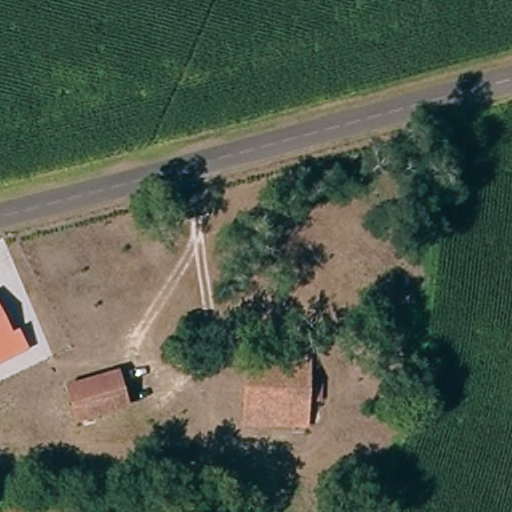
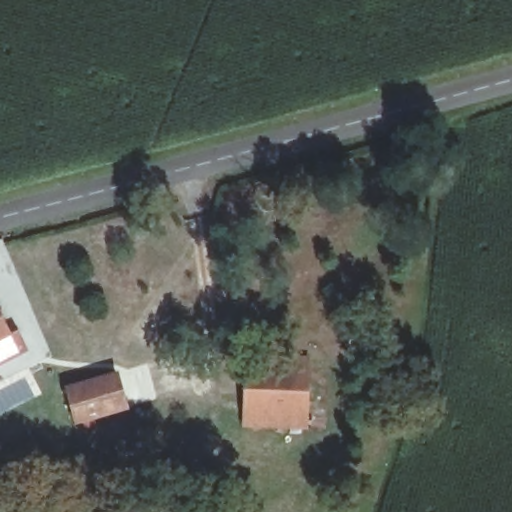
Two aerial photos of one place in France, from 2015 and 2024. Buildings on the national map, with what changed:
unchanged [(11,347),(0,353),(0,325),(11,347)]
unchanged [(308,357),(307,380),(252,376),(254,353),(265,354),(308,357)]
unchanged [(116,375),(124,409),(77,420),(69,385),(116,375)]
unchanged [(305,435),(249,431),(250,414),(252,376),(307,380),(306,418),(305,435)]

